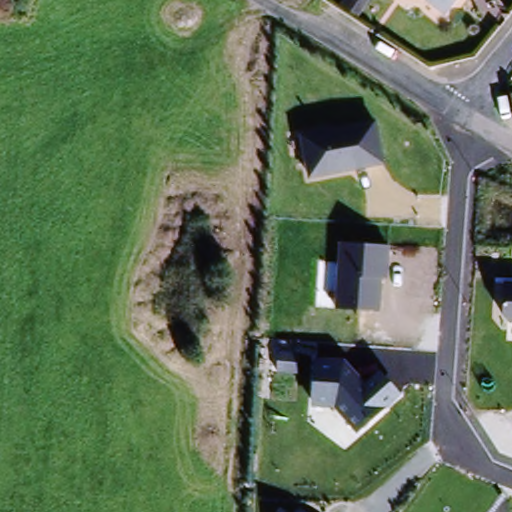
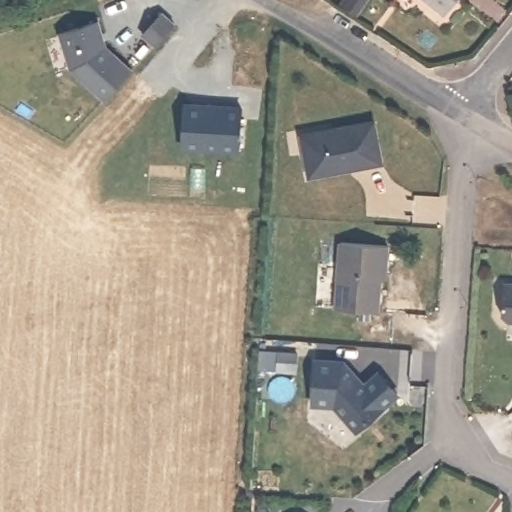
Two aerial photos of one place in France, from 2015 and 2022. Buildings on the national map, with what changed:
unchanged [(352,10),(340,0),(361,0),(352,10)]
unchanged [(429,0),(452,0),(442,11),(429,0)]
new [(164,11),(177,25),(158,46),(144,34),(164,11)]
new [(99,20),(107,47),(135,71),(107,101),(72,70),(61,33),(99,20)]
new [(182,102),(242,107),(239,150),(179,144),(182,102)]
unchanged [(378,118),(387,160),(307,177),(298,133),(378,118)]
unchanged [(389,244),(386,278),(380,278),(378,315),(336,311),(339,243),(389,244)]
unchanged [(512,322),(502,321),(502,282),(512,283),(512,322)]
unchanged [(346,358),(363,379),(375,369),(399,398),(357,435),(333,407),(310,407),(312,356),(346,358)]

